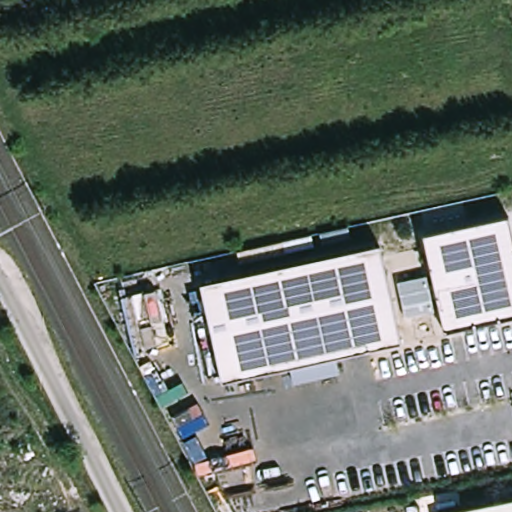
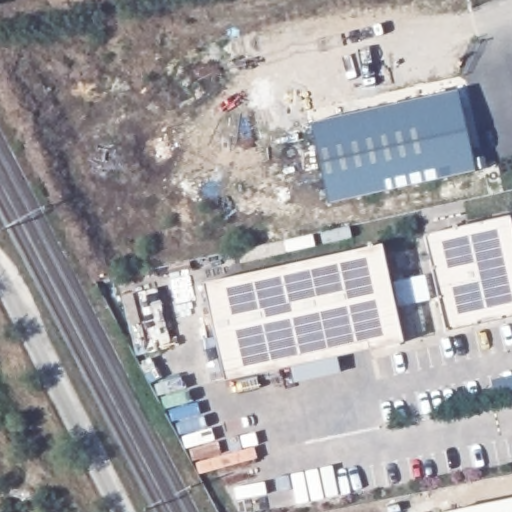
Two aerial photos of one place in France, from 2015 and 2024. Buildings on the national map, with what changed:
new [(459,90),(477,170),(330,202),(312,122),(459,90)]
unchanged [(512,217),(512,317),(447,332),(426,234),(512,215),(512,217)]
unchanged [(383,245),(404,342),(226,380),(205,283),(383,245)]
unchanged [(441,512),(512,498),(512,512),(441,512)]

